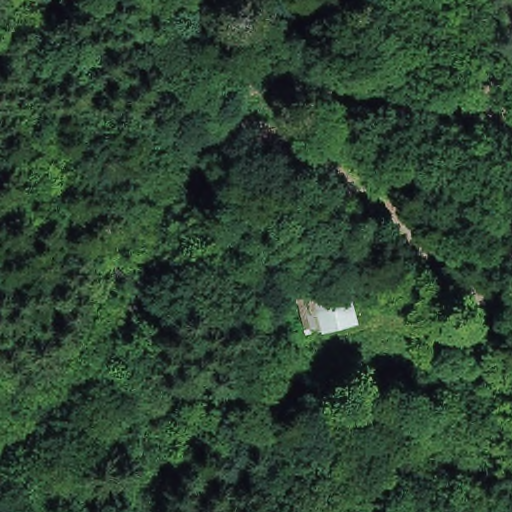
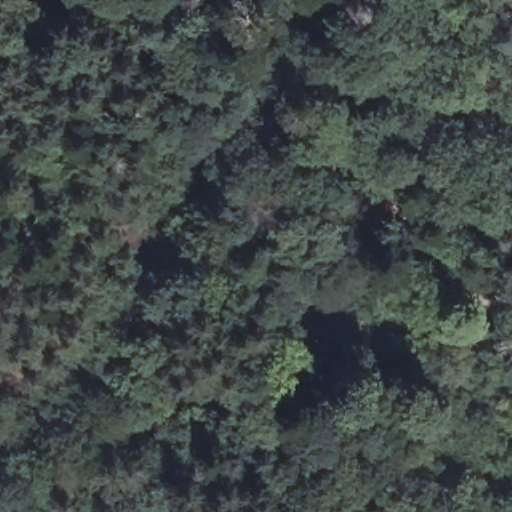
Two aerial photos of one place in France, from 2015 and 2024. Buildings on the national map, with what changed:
unchanged [(298,296),(332,288),(340,320),(307,328),(298,296)]

